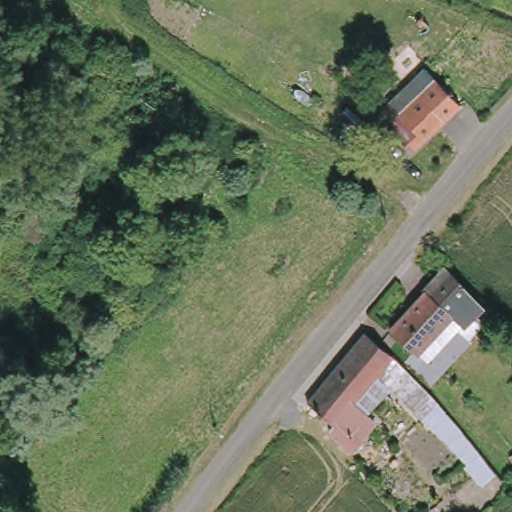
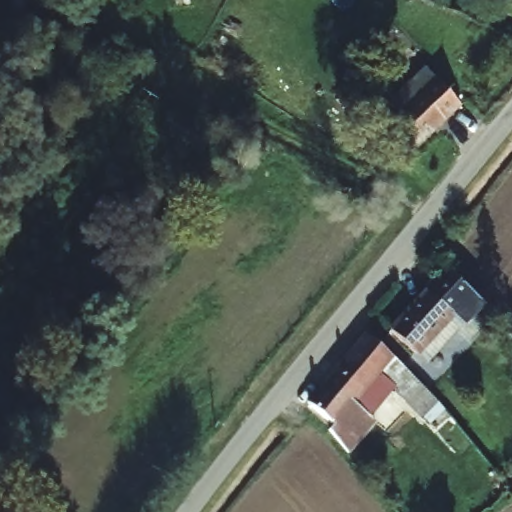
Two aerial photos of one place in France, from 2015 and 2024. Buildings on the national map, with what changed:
unchanged [(411,77),(402,69),(414,57),(423,67),(411,77)]
unchanged [(415,156),(380,120),(428,73),(463,110),(415,156)]
unchanged [(372,111),(362,101),(375,89),(385,99),(372,111)]
unchanged [(338,144),(345,134),(361,142),(355,154),(338,144)]
unchanged [(463,282),(457,290),(470,302),(468,303),(480,314),(463,331),(452,321),(422,352),(413,344),(410,344),(385,321),(441,259),(463,282)]
unchanged [(422,416),(416,410),(377,373),(353,402),(375,422),(347,453),(330,431),(333,427),(310,407),(307,403),(364,333),(385,350),(430,396),(437,402),(422,416)]

